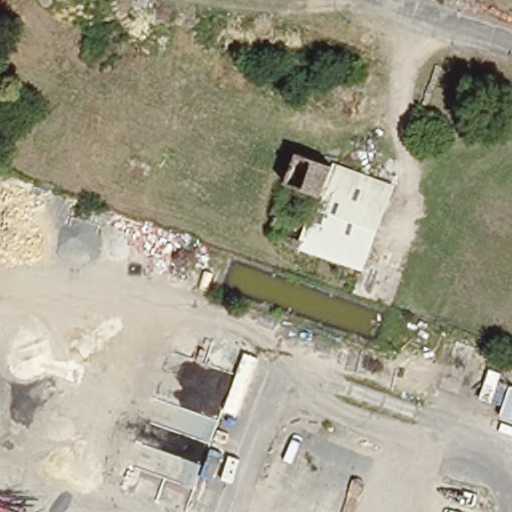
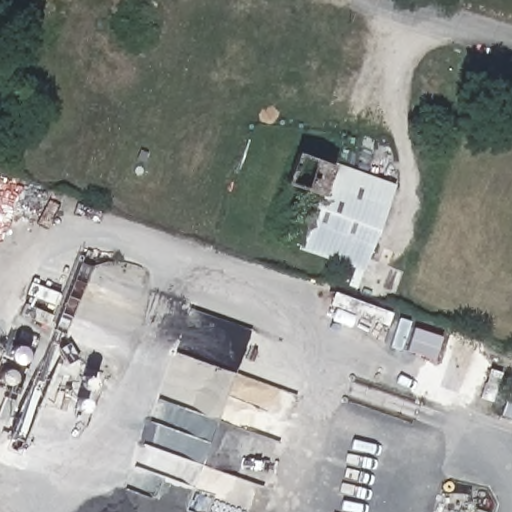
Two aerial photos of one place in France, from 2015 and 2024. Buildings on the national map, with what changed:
unchanged [(397,184),(365,266),(274,230),(306,150),(397,184)]

